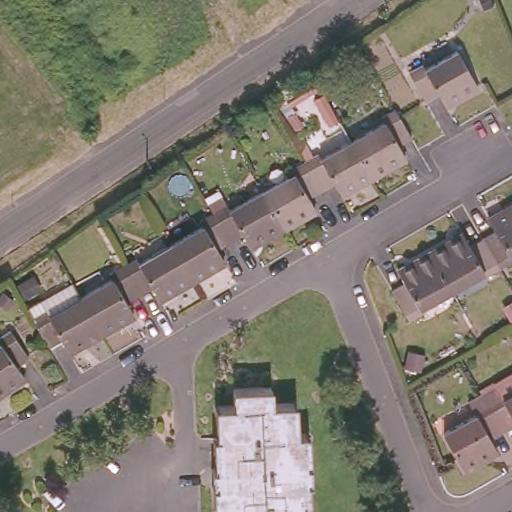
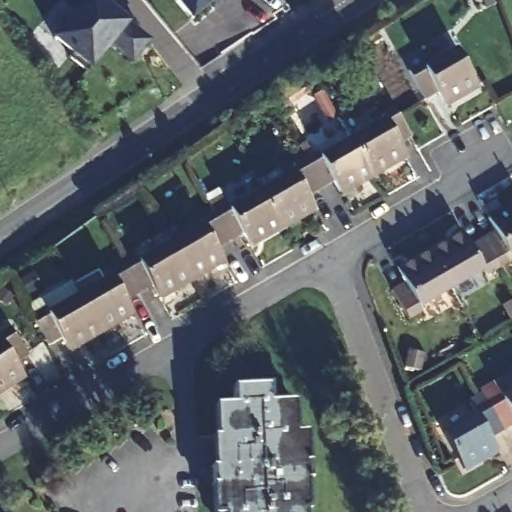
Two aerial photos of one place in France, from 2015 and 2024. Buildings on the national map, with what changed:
new [(83,0),(100,0),(150,39),(133,60),(112,43),(90,69),(55,38),(83,0)]
new [(176,0),(213,0),(193,18),(176,0)]
unchanged [(485,86),(452,105),(445,93),(432,100),(415,72),(428,64),(432,70),(465,52),(485,86)]
unchanged [(377,109),(374,104),(388,94),(405,123),(390,131),(397,144),(365,164),(344,128),(377,109)]
unchanged [(310,140),(313,145),(344,128),(365,164),(332,182),(325,169),(313,177),(297,148),(310,140)]
unchanged [(286,161),(283,156),(297,148),(313,177),(299,184),(306,198),(274,217),(253,181),(286,161)]
unchanged [(218,194),(222,199),(253,181),(274,217),(242,235),(235,223),(222,230),(205,202),(218,194)]
unchanged [(222,230),(207,239),(215,252),(182,271),(162,234),(193,216),(190,211),(205,202),(222,230)]
unchanged [(495,229),(487,217),(512,202),(512,248),(507,251),(512,258),(498,266),(481,237),(495,229)]
unchanged [(427,252),(460,232),(468,244),(481,237),(498,266),(485,274),(481,267),(447,287),(427,252)]
unchanged [(127,248),(130,253),(162,234),(182,271),(150,289),(143,277),(130,284),(114,255),(127,248)]
unchanged [(415,305),(419,312),(407,319),(390,290),(402,283),(396,270),(427,252),(447,287),(415,305)]
unchanged [(105,268),(102,263),(114,255),(130,284),(119,291),(125,304),(94,323),(73,287),(105,268)]
unchanged [(37,300),(41,305),(73,287),(94,323),(61,342),(55,329),(41,338),(25,308),(37,300)]
unchanged [(24,347),(10,356),(18,369),(0,381),(0,323),(5,319),(24,347)]
unchanged [(215,402),(230,402),(230,384),(270,383),(270,401),(292,401),(292,433),(305,433),(305,512),(212,512),(212,464),(212,461),(215,461),(215,436),(215,402)]
unchanged [(500,433),(484,405),(497,398),(500,402),(512,394),(512,426),(500,433)]
unchanged [(487,441),(495,454),(462,473),(442,435),(473,417),(472,412),(484,405),(500,433),(487,441)]

